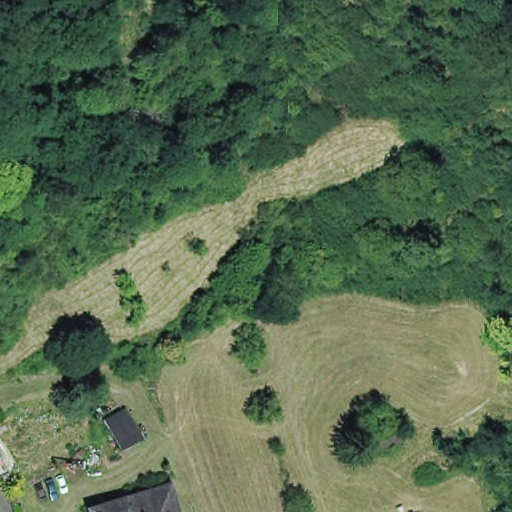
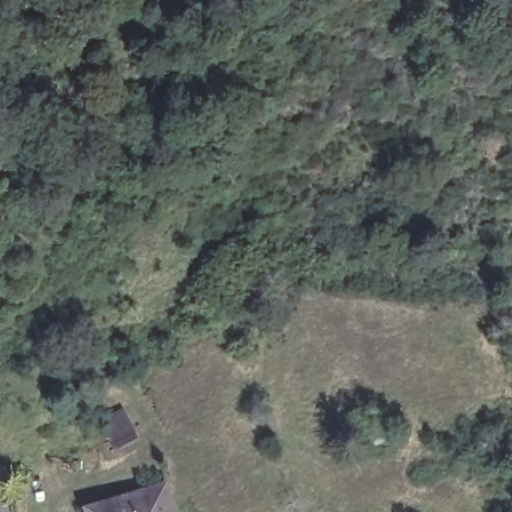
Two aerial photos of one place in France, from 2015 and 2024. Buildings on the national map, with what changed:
unchanged [(132,424),(139,437),(117,448),(110,435),(132,424)]
unchanged [(366,435),(384,429),(386,436),(397,433),(399,440),(371,450),(366,435)]
unchanged [(164,480),(173,512),(90,512),(88,503),(164,480)]

